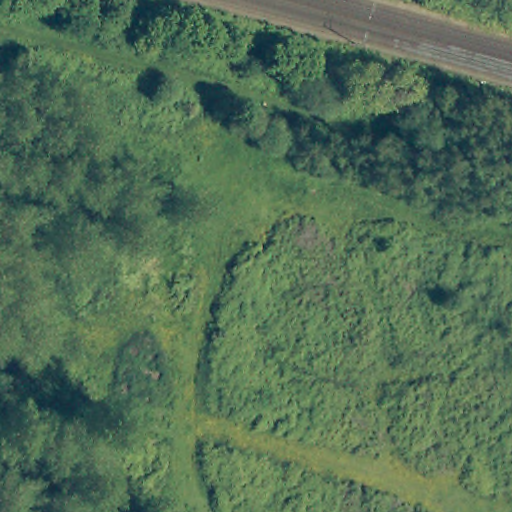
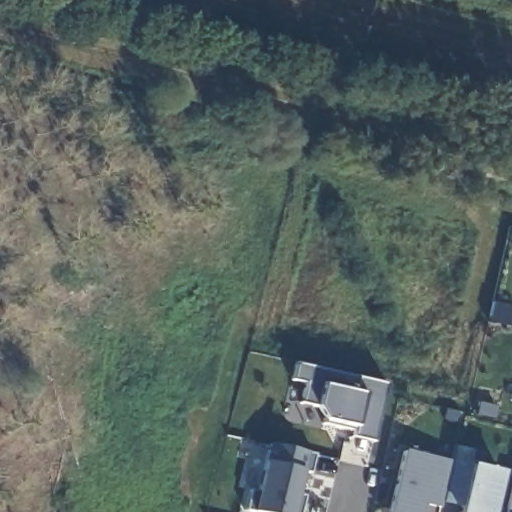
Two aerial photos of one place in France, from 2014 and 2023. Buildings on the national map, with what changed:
new [(375,441),(353,436),(355,426),(324,419),(315,406),(300,401),(305,382),(291,378),(295,363),(388,383),(375,441)]
new [(311,472),(303,471),(298,495),(306,496),(302,512),(254,512),(252,512),(264,461),(267,443),(316,453),(311,472)]
new [(495,512),(458,512),(460,505),(445,501),(442,508),(429,505),(428,512),(425,512),(422,511),(422,512),(389,512),(404,451),(470,464),(504,472),(495,512)]
new [(512,483),(512,512),(506,510),(512,483)]

